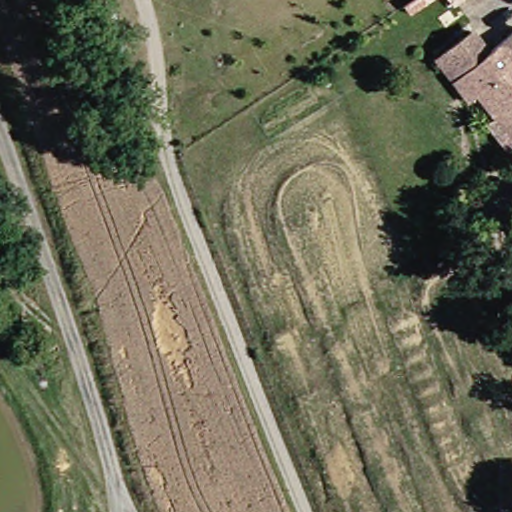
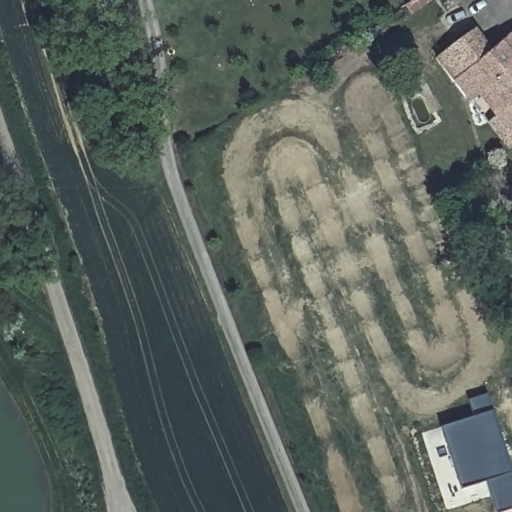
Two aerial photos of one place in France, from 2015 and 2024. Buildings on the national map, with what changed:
new [(406,5),(413,0),(433,0),(411,15),(406,5)]
new [(451,0),(466,0),(456,6),(451,0)]
unchanged [(436,59),(469,35),(483,51),(512,31),(512,141),(508,145),(450,76),(436,59)]
new [(500,512),(494,512),(486,482),(460,490),(441,427),(473,417),(468,400),(488,394),(512,471),(512,509),(500,512)]

